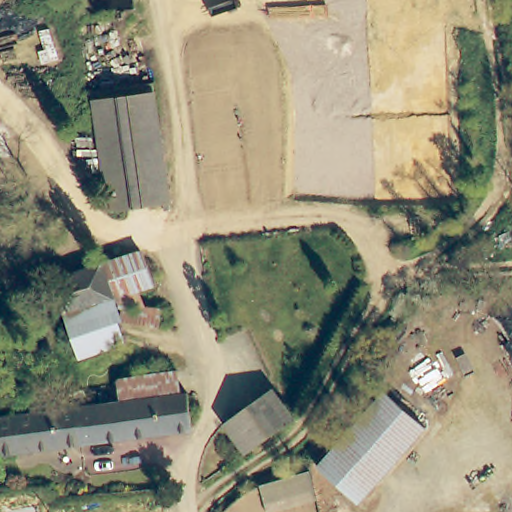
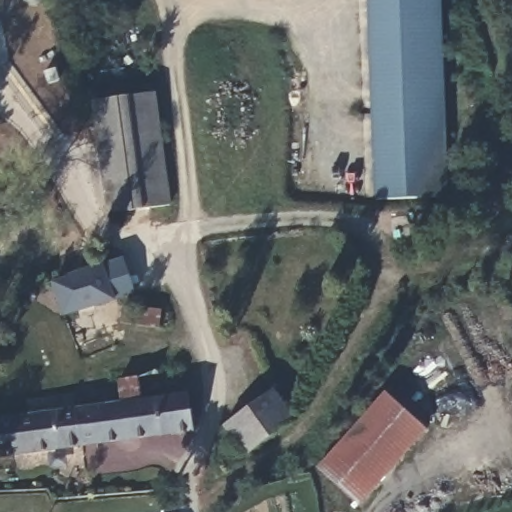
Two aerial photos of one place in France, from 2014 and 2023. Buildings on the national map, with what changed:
new [(447,198),(376,198),(370,0),(442,0),(447,198)]
unchanged [(112,211),(98,98),(157,90),(172,203),(112,211)]
unchanged [(72,271),(103,263),(141,251),(151,285),(113,297),(65,311),(56,281),(73,275),(72,271)]
unchanged [(161,306),(160,310),(158,329),(122,325),(113,297),(131,305),(161,306)]
unchanged [(190,396),(125,403),(123,380),(159,375),(182,371),(184,392),(190,396)]
unchanged [(297,415),(248,451),(224,423),(274,387),(297,415)]
unchanged [(387,395),(429,432),(363,508),(324,473),(323,469),(387,395)]
unchanged [(193,433),(0,456),(0,419),(125,403),(190,396),(193,433)]

